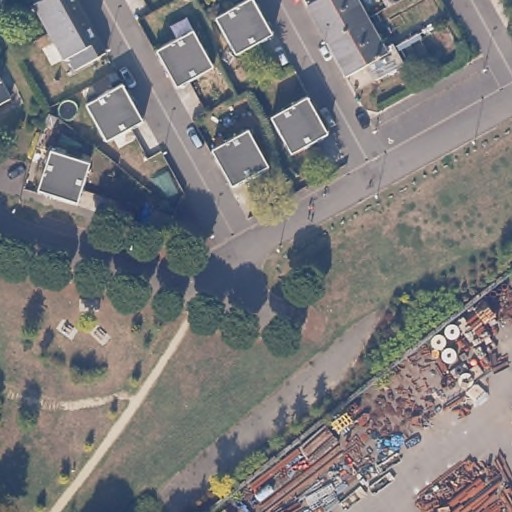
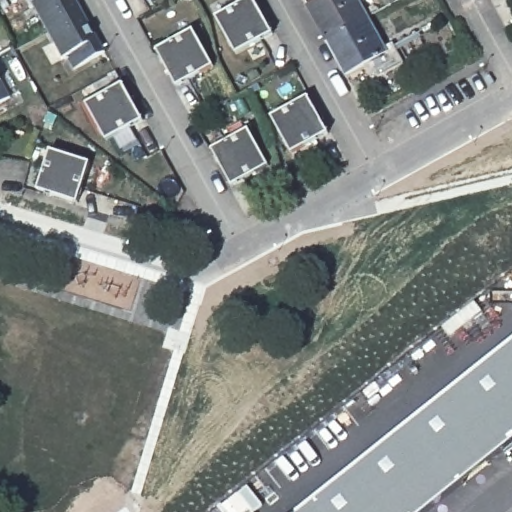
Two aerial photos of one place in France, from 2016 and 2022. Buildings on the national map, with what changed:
unchanged [(9,0),(0,5),(0,0),(9,0)]
unchanged [(40,4),(37,0),(73,0),(82,17),(52,34),(37,7),(40,4)]
unchanged [(248,0),(255,0),(273,34),(237,54),(216,18),(248,0)]
unchanged [(355,0),(367,20),(326,43),(306,8),(320,0),(355,0)]
unchanged [(77,71),(71,59),(67,61),(52,34),(82,17),(97,44),(101,42),(107,54),(77,71)]
unchanged [(384,52),(392,49),(403,68),(380,80),(371,65),(345,78),(326,43),(367,20),(384,52)]
unchanged [(156,52),(194,30),(214,66),(177,87),(156,52)]
unchanged [(12,98),(0,105),(0,76),(12,98)]
unchanged [(123,84),(144,121),(107,141),(87,104),(123,84)]
unchanged [(272,118),(308,97),(329,134),(292,154),(272,118)]
unchanged [(224,170),(212,150),(249,129),(270,166),(268,167),(232,187),(224,170)]
unchanged [(47,164),(51,150),(91,163),(89,169),(79,204),(38,190),(47,164)]
new [(512,442),(427,512),(302,512),(512,343),(512,442)]

